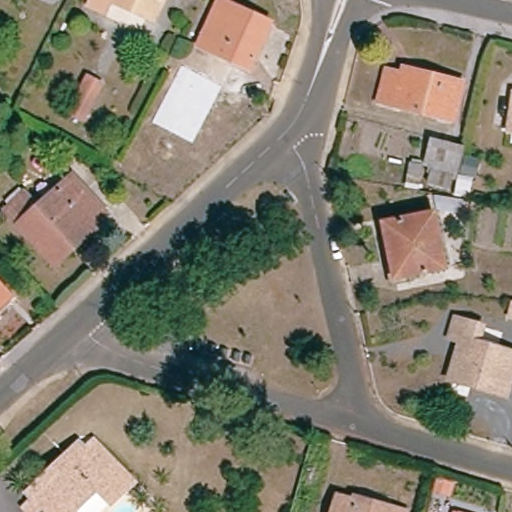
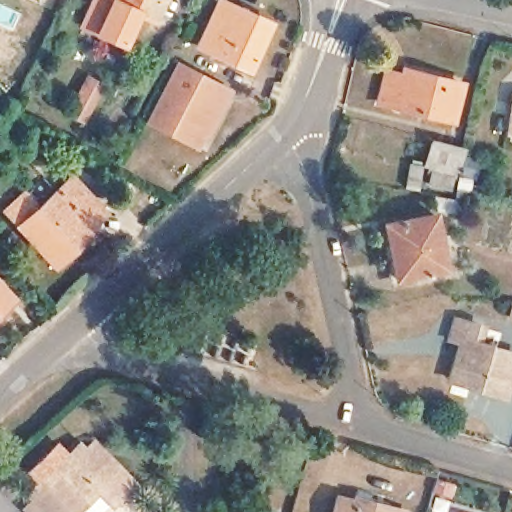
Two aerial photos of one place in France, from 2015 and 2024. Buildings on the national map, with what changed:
unchanged [(107,14),(93,7),(96,0),(163,0),(153,20),(113,2),(107,14)]
unchanged [(248,72),(198,48),(220,3),(270,27),(248,72)]
new [(205,133),(199,147),(144,122),(177,59),(233,89),(209,135),(205,133)]
demolished [(209,76),(203,90),(198,88),(182,119),(163,110),(186,64),(209,76)]
unchanged [(462,85),(452,121),(380,102),(388,72),(403,77),(405,70),(462,85)]
unchanged [(102,86),(83,121),(68,113),(86,78),(102,86)]
unchanged [(511,133),(512,127),(512,134),(511,133)]
unchanged [(431,169),(432,164),(427,163),(432,143),(463,151),(456,176),(431,169)]
unchanged [(71,251),(55,265),(7,212),(24,195),(38,210),(72,180),(103,213),(92,224),(96,229),(71,251)]
unchanged [(385,224),(433,214),(443,269),(396,279),(385,224)]
unchanged [(0,308),(0,287),(10,298),(0,308)]
demolished [(239,292),(261,299),(255,319),(234,312),(239,292)]
new [(509,319),(512,307),(512,320),(509,319)]
unchanged [(454,343),(459,325),(486,333),(481,349),(512,358),(512,392),(509,401),(455,386),(466,346),(454,343)]
unchanged [(27,499),(23,495),(76,446),(79,449),(86,442),(127,484),(105,505),(91,491),(70,512),(23,512),(18,507),(27,499)]
unchanged [(359,505),(362,499),(395,508),(406,512),(337,512),(340,500),(359,505)]

